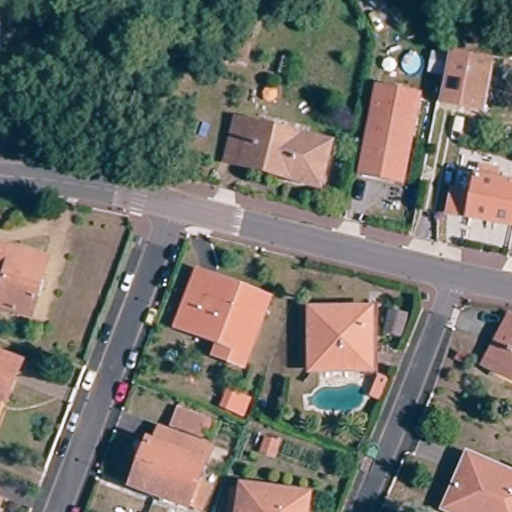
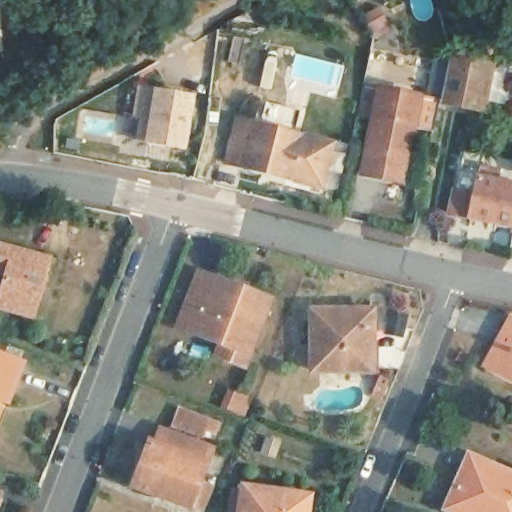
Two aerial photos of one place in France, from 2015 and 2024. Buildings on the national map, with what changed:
unchanged [(442,78),(426,75),(429,59),(446,61),(488,65),(478,116),(436,108),(442,78)]
new [(195,95),(187,150),(137,143),(140,119),(133,118),(138,87),(195,95)]
unchanged [(358,172),(375,89),(415,96),(397,180),(358,172)]
unchanged [(237,131),(241,120),(255,124),(332,146),(321,187),(230,161),(237,131)]
unchanged [(450,210),(459,170),(512,182),(512,224),(450,210)]
unchanged [(0,296),(6,278),(0,276),(0,247),(45,259),(27,314),(0,309),(0,296)]
unchanged [(222,335),(182,319),(201,270),(221,278),(270,298),(266,309),(246,363),(215,352),(222,335)]
unchanged [(405,317),(401,337),(385,334),(390,313),(405,317)]
unchanged [(312,376),(313,314),(368,315),(367,376),(312,376)]
unchanged [(511,381),(492,370),(502,350),(512,332),(512,380),(511,381)]
unchanged [(455,359),(460,353),(469,359),(465,365),(455,359)]
unchanged [(4,407),(0,406),(0,366),(18,373),(4,407)]
unchanged [(380,377),(388,381),(380,401),(371,397),(380,377)]
unchanged [(223,407),(229,392),(239,396),(233,411),(223,407)]
unchanged [(179,408),(209,420),(202,439),(171,428),(179,408)]
unchanged [(202,509),(188,504),(187,507),(134,487),(149,444),(154,446),(159,431),(209,449),(196,482),(210,487),(202,509)]
unchanged [(466,460),(512,478),(512,512),(446,512),(466,460)]
unchanged [(307,501),(306,512),(229,512),(232,493),(245,494),(245,492),(307,501)]
unchanged [(0,500),(0,495),(2,496),(0,500)]

